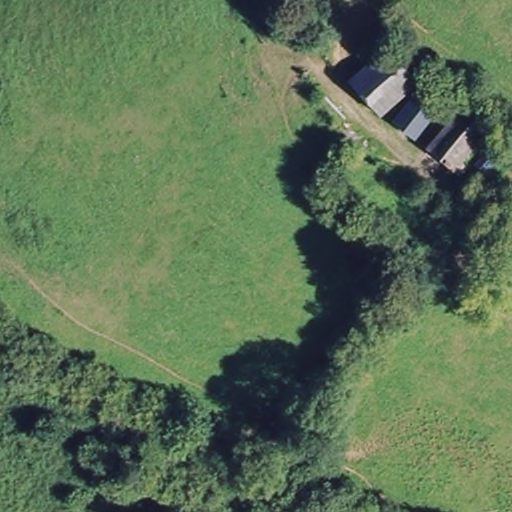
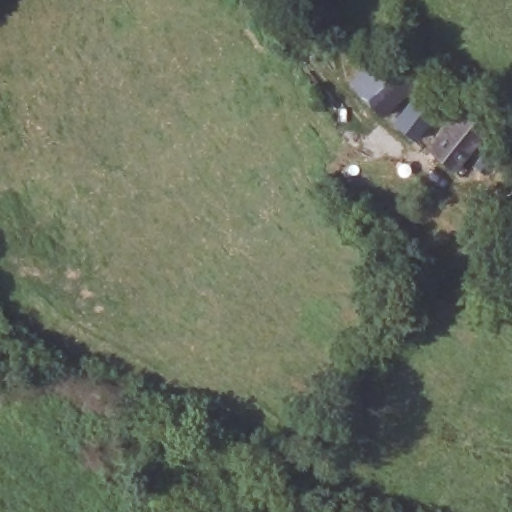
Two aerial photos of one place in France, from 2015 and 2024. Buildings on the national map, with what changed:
unchanged [(388,53),(417,85),(382,117),(354,85),(388,53)]
unchanged [(498,169),(492,179),(477,166),(468,155),(463,163),(470,170),(461,179),(394,125),(416,97),(437,116),(428,126),(440,139),(466,108),(493,130),(480,143),(483,146),(478,157),(483,160),(486,157),(498,169)]

